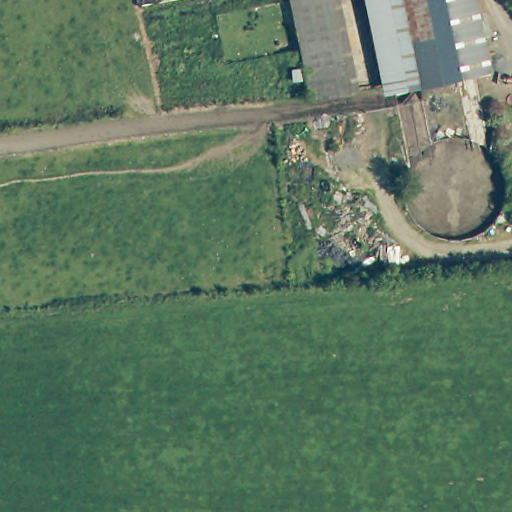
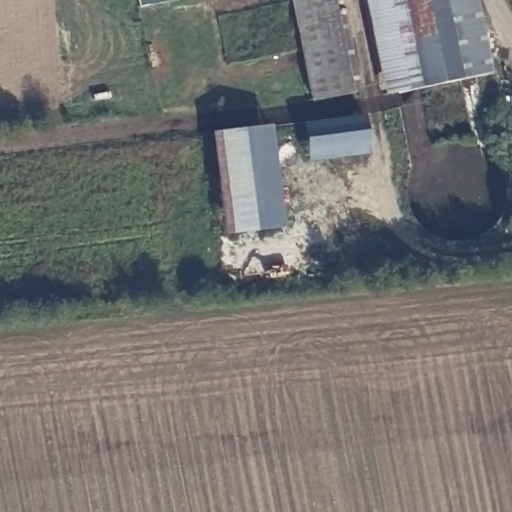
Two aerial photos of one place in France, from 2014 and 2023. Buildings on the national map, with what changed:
unchanged [(330,84),(313,88),(295,0),(335,0),(352,80),(330,84)]
unchanged [(441,84),(398,93),(394,77),(386,34),(379,0),(478,0),(493,73),(441,84)]
new [(305,163),(300,123),(362,115),(368,155),(305,163)]
new [(269,128),(282,229),(223,236),(209,133),(269,128)]

